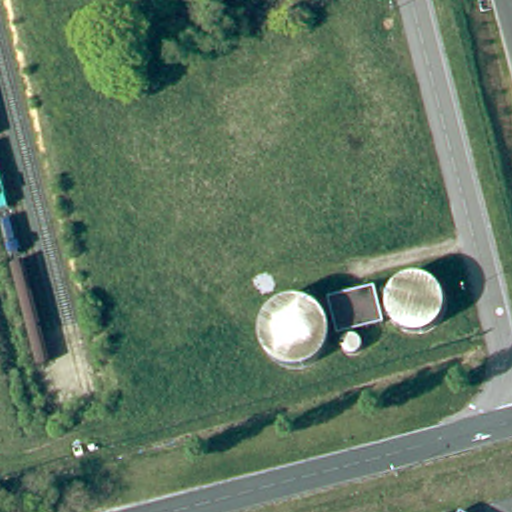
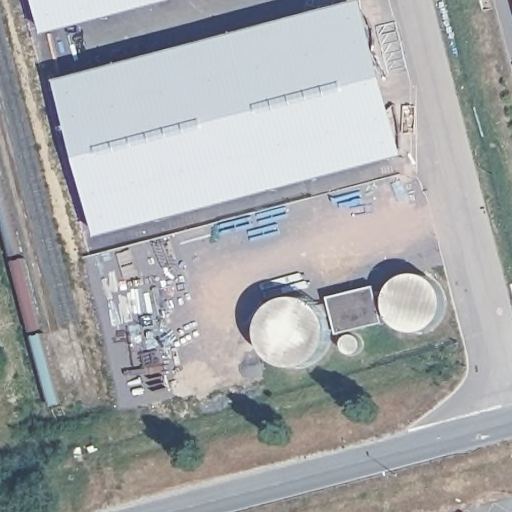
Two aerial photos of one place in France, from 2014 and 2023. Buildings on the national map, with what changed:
new [(47,35),(37,0),(179,0),(47,35)]
new [(100,237),(58,80),(362,0),(366,0),(407,155),(100,237)]
unchanged [(383,325),(332,338),(322,301),(374,288),(383,325)]

